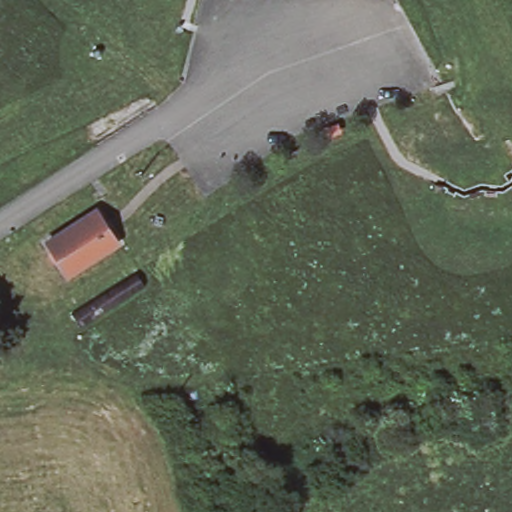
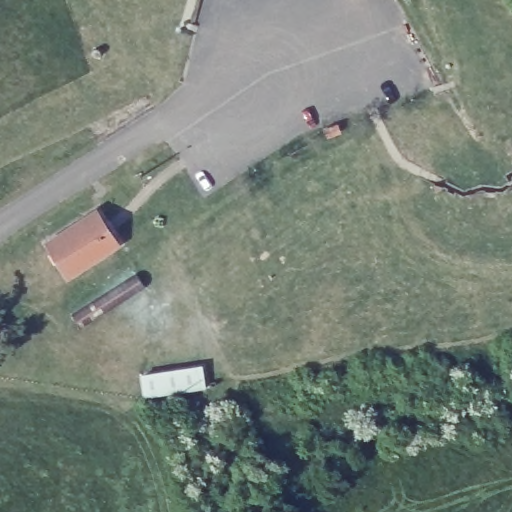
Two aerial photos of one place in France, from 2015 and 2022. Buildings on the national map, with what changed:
unchanged [(69,276),(49,245),(98,213),(118,244),(69,276)]
unchanged [(91,301),(135,273),(145,288),(100,316),(80,328),(71,314),(91,301)]
new [(206,388),(145,397),(141,375),(202,365),(206,388)]

